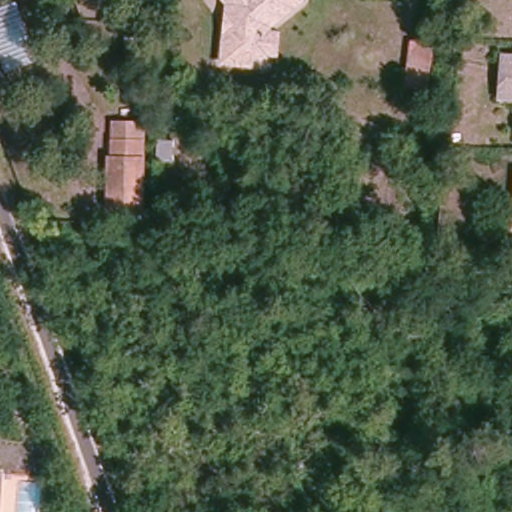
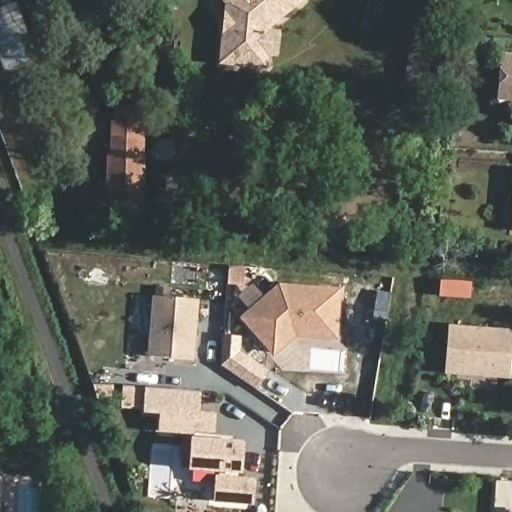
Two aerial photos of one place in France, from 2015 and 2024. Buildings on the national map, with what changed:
unchanged [(262,52),(260,65),(216,59),(225,0),(299,0),(300,1),(266,24),(264,32),(275,34),(272,53),(262,52)]
unchanged [(8,58),(0,41),(0,17),(9,13),(26,49),(8,58)]
unchanged [(414,47),(437,50),(432,88),(408,85),(414,47)]
unchanged [(499,100),(502,57),(512,57),(512,101),(499,100)]
unchanged [(159,100),(159,121),(143,120),(143,97),(159,100)]
unchanged [(109,210),(113,158),(120,158),(121,140),(123,126),(149,127),(147,141),(141,212),(109,210)]
unchanged [(511,231),(512,217),(512,231),(511,231)]
new [(285,288),(343,293),(340,339),(299,336),(278,355),(248,320),(285,288)]
new [(159,298),(200,301),(195,361),(154,357),(159,298)]
new [(465,372),(448,371),(451,327),(469,328),(512,332),(512,376),(465,372)]
new [(227,336),(243,337),(242,350),(242,354),(270,373),(258,390),(225,367),(226,348),(227,336)]
new [(153,387),(204,392),(202,414),(218,416),(216,441),(247,443),(244,479),(258,480),(256,505),(221,502),(223,472),(196,470),(199,433),(166,431),(167,412),(151,411),(153,387)]
unchanged [(0,469),(1,469),(0,475),(0,469)]

